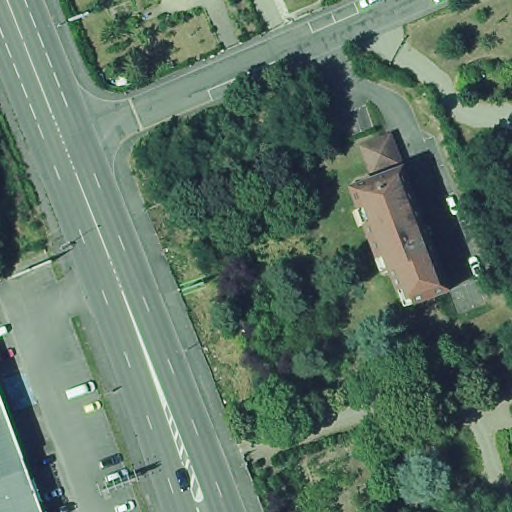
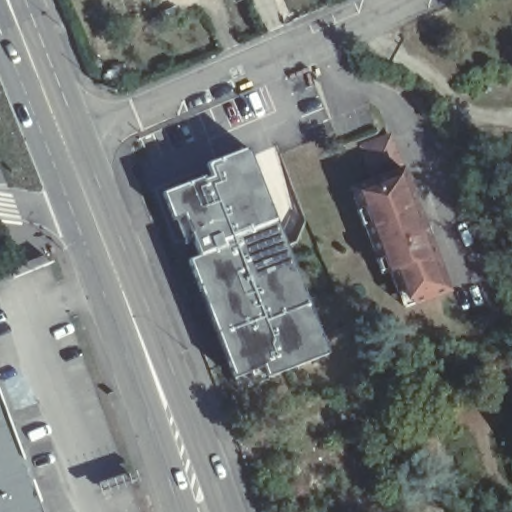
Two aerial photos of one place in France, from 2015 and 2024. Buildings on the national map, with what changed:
unchanged [(166,0),(179,0),(168,5),(166,0)]
unchanged [(393,135),(404,163),(376,173),(365,145),(393,135)]
new [(330,353),(239,389),(190,257),(200,252),(185,215),(173,219),(162,189),(211,171),(207,159),(247,145),(330,353)]
unchanged [(406,169),(452,290),(416,303),(410,287),(401,290),(391,264),(384,267),(371,234),(378,232),(369,207),(362,209),(354,188),(406,169)]
unchanged [(0,398),(42,512),(0,512),(0,398)]

